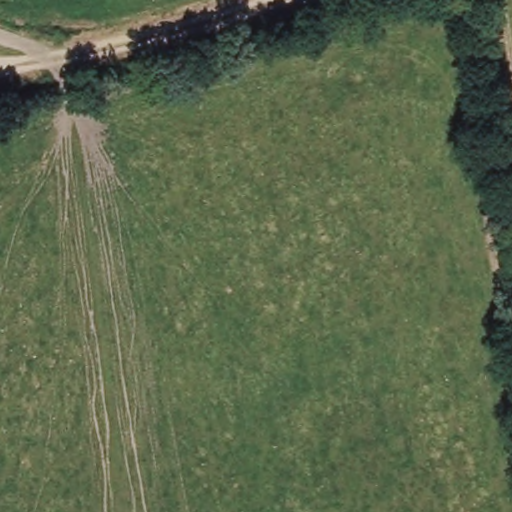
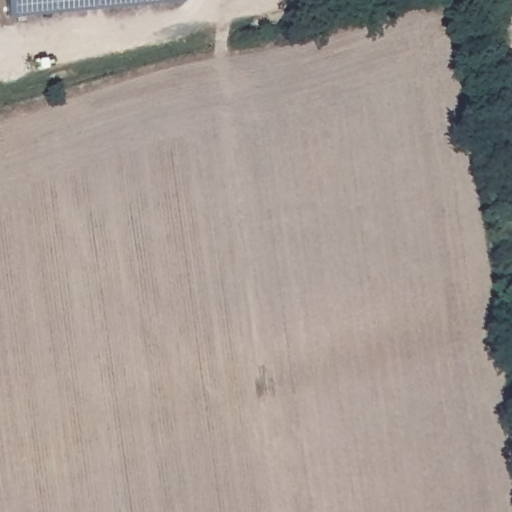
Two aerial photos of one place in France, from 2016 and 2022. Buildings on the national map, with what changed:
new [(6,17),(5,0),(182,0),(6,17)]

